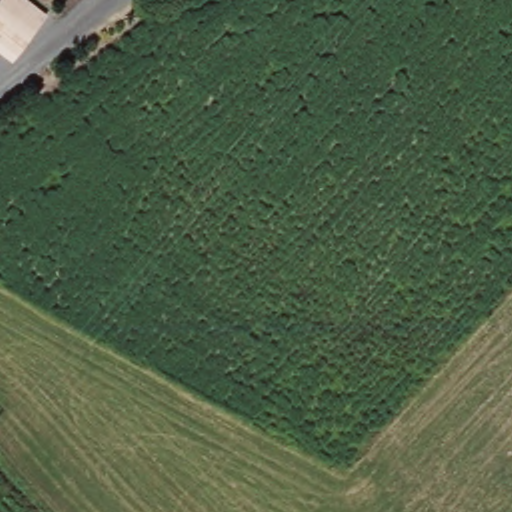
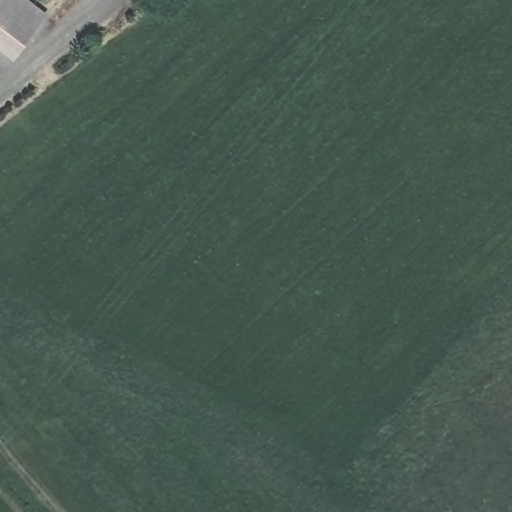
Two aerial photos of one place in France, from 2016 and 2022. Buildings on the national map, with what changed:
unchanged [(6,0),(29,0),(51,15),(11,70),(0,80),(0,6),(6,0)]

